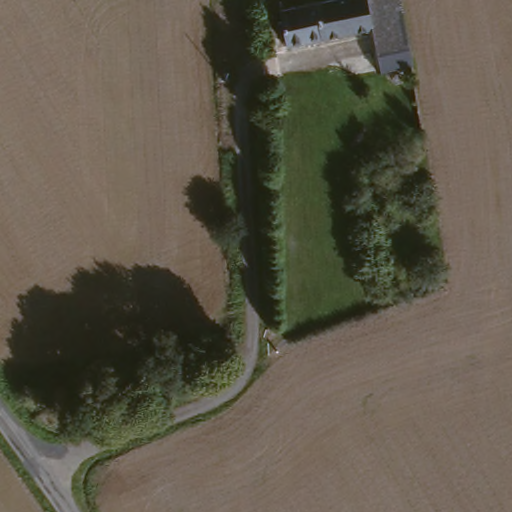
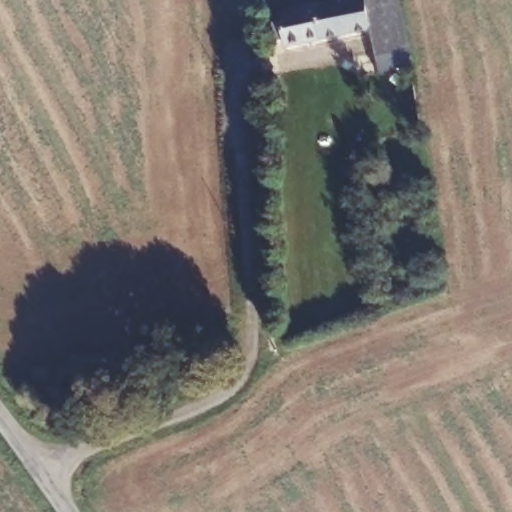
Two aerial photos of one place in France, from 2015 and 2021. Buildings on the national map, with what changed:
unchanged [(418,45),(383,50),(378,25),(295,37),(292,28),(287,30),(282,4),(307,0),(408,0),(418,45)]

